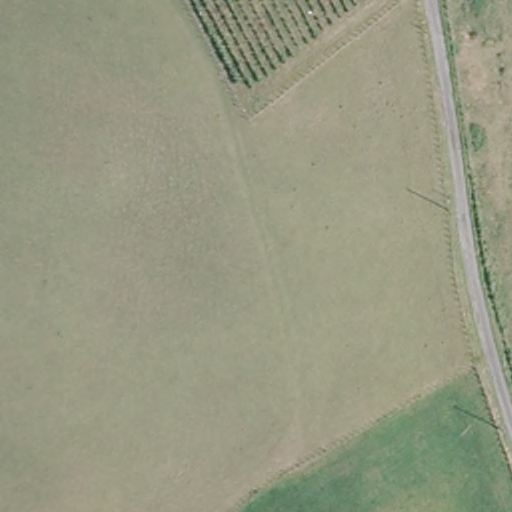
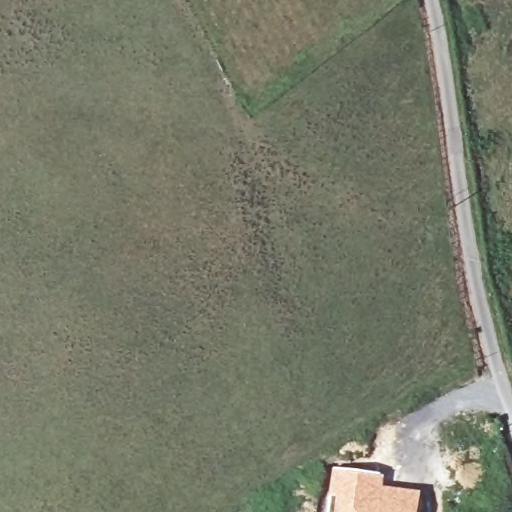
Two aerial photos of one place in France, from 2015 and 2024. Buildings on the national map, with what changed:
new [(384,474),(383,486),(421,492),(418,512),(328,512),(331,467),(384,474)]

